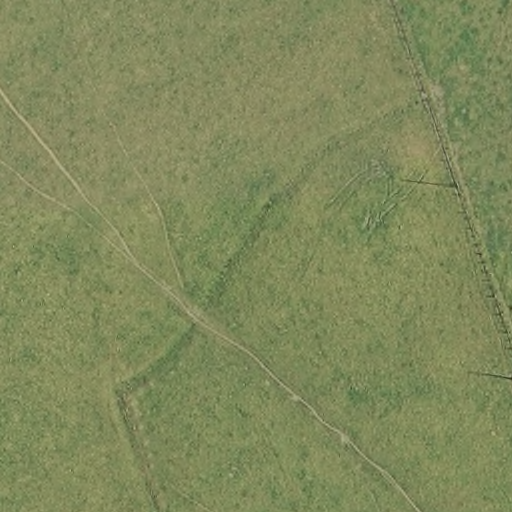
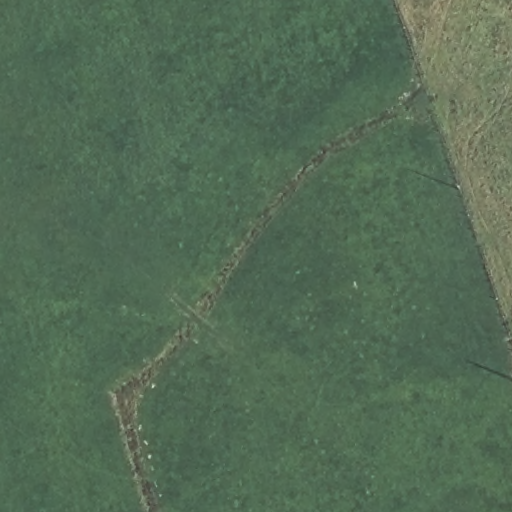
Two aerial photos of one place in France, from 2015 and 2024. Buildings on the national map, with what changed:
[]

